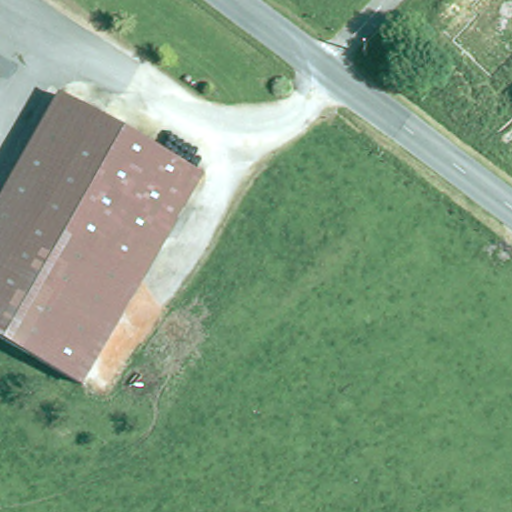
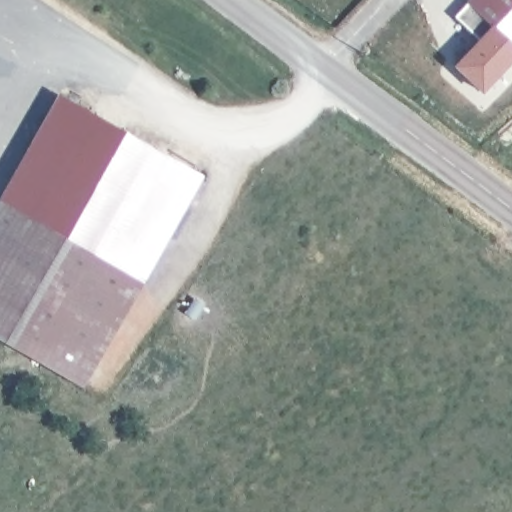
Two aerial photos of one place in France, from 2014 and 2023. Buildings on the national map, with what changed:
new [(454,16),(469,0),(512,0),(512,62),(482,94),(453,67),(480,38),(454,16)]
unchanged [(4,204),(63,100),(131,139),(179,167),(201,179),(187,203),(141,283),(4,204)]
unchanged [(141,283),(81,387),(0,339),(0,211),(4,204),(141,283)]

